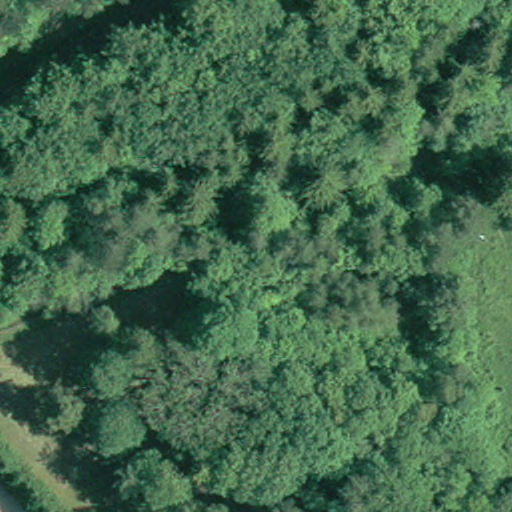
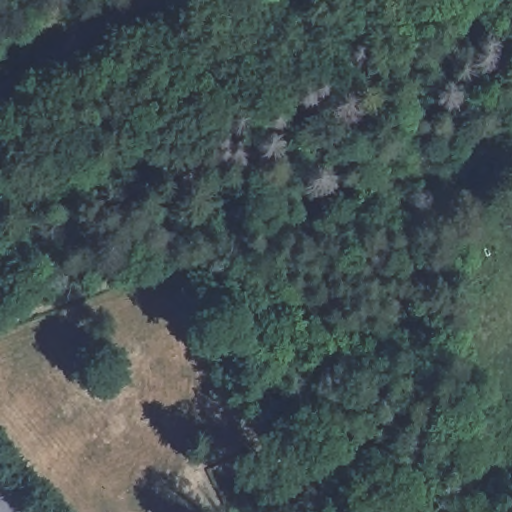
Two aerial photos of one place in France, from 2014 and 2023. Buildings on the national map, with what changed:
unchanged [(184,467),(223,450),(255,512),(207,512),(184,467)]

